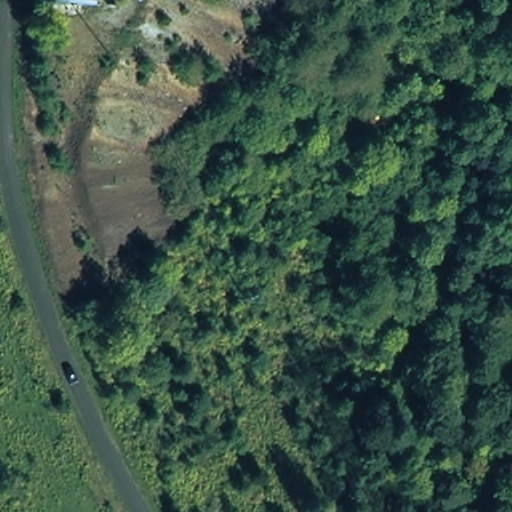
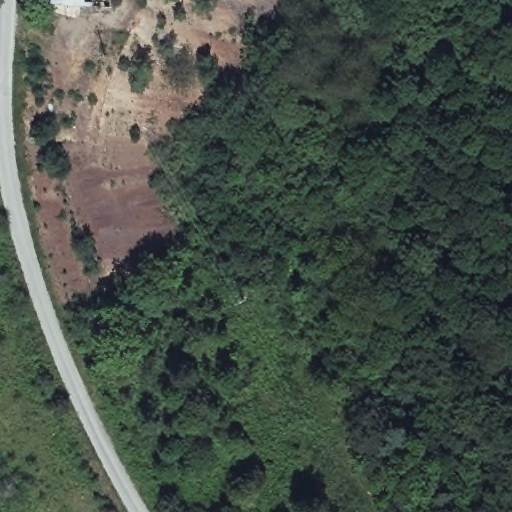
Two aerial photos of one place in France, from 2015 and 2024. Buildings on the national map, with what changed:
unchanged [(122,11),(47,7),(47,0),(123,0),(122,11)]

